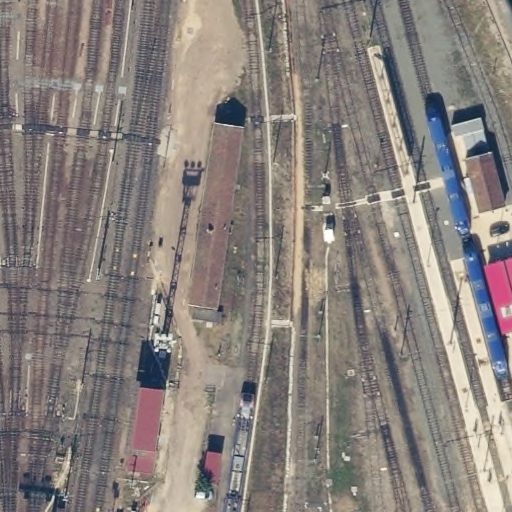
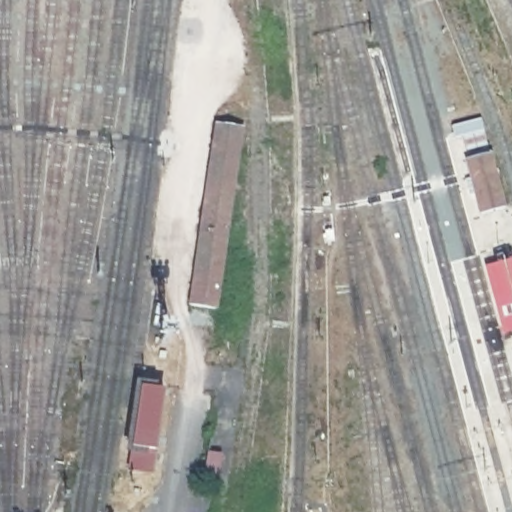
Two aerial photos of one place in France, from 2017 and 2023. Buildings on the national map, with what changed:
unchanged [(186,300),(212,117),(237,121),(211,304),(186,300)]
unchanged [(484,266),(512,259),(512,331),(502,333),(484,266)]
unchanged [(135,464),(147,381),(169,384),(157,467),(135,464)]

